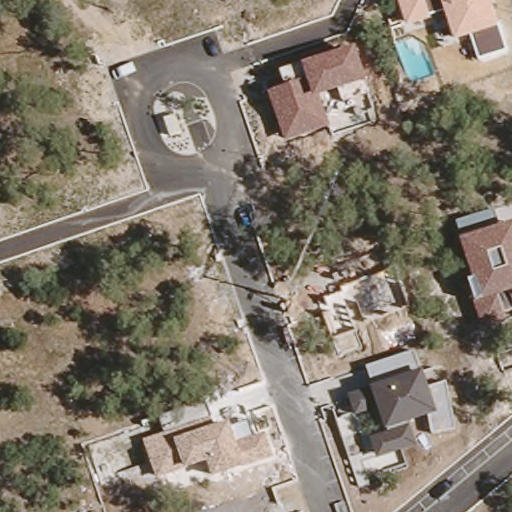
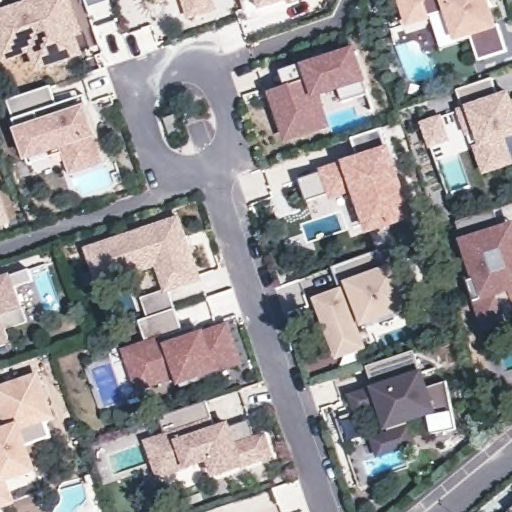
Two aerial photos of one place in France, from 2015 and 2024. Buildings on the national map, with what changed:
new [(84,57),(37,73),(30,56),(3,60),(0,50),(0,11),(32,0),(72,0),(83,33),(77,36),(84,57)]
new [(161,3),(160,0),(169,0),(161,3)]
new [(215,10),(189,18),(184,0),(211,0),(215,10)]
new [(259,11),(256,0),(290,0),(259,11)]
unchanged [(398,0),(490,0),(500,30),(507,52),(479,61),(471,38),(457,43),(446,14),(431,18),(432,21),(408,28),(398,0)]
unchanged [(269,92),(286,87),(280,71),(303,63),(357,47),(367,83),(369,96),(344,103),(340,92),(321,97),(329,128),(286,142),(269,92)]
new [(502,106),(512,102),(512,136),(503,139),(512,163),(483,173),(475,147),(481,145),(477,130),(467,134),(459,110),(463,109),(457,89),(492,77),(502,106)]
new [(94,117),(109,162),(71,175),(69,168),(62,147),(26,159),(7,101),(51,86),(61,116),(41,123),(44,134),(89,119),(94,117)]
new [(432,151),(423,125),(444,118),(452,144),(432,151)]
new [(357,155),(352,138),(380,128),(386,145),(390,143),(414,220),(367,235),(352,193),(330,200),(327,194),(308,201),(301,179),(319,173),(318,170),(357,155)]
new [(10,224),(0,227),(0,194),(10,224)]
unchanged [(476,300),(469,282),(475,281),(462,242),(456,223),(494,210),(501,227),(512,224),(512,312),(505,315),(508,323),(483,330),(472,301),(476,300)]
new [(180,219),(200,280),(169,291),(176,309),(150,318),(144,299),(168,291),(157,259),(99,279),(89,249),(180,219)]
new [(381,251),(388,267),(401,263),(417,308),(364,328),(356,305),(351,306),(367,350),(336,361),(314,299),(339,290),(333,268),(381,251)]
new [(28,270),(46,264),(50,276),(32,282),(14,288),(26,322),(4,330),(9,343),(0,346),(0,280),(28,270)]
new [(153,342),(146,323),(151,322),(150,318),(176,309),(177,309),(185,331),(196,327),(199,335),(229,325),(242,362),(182,383),(179,376),(140,390),(126,351),(153,342)]
unchanged [(371,439),(388,433),(380,411),(357,417),(349,395),(372,388),(367,367),(414,351),(421,372),(423,372),(428,388),(447,382),(457,430),(433,435),(430,417),(410,424),(416,447),(377,459),(371,439)]
new [(40,376),(62,436),(34,447),(52,496),(8,512),(0,512),(0,391),(40,376)]
unchanged [(144,441),(166,434),(161,418),(207,403),(215,427),(231,422),(233,428),(249,422),(254,437),(266,432),(274,457),(245,468),(212,478),(208,463),(187,470),(158,480),(144,441)]
new [(512,507),(512,512),(509,512),(508,511),(512,507)]

